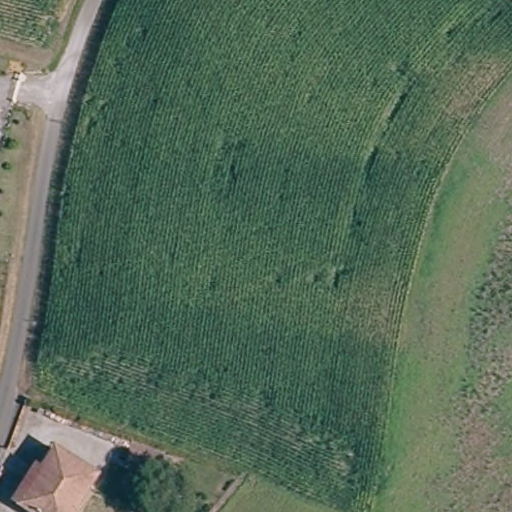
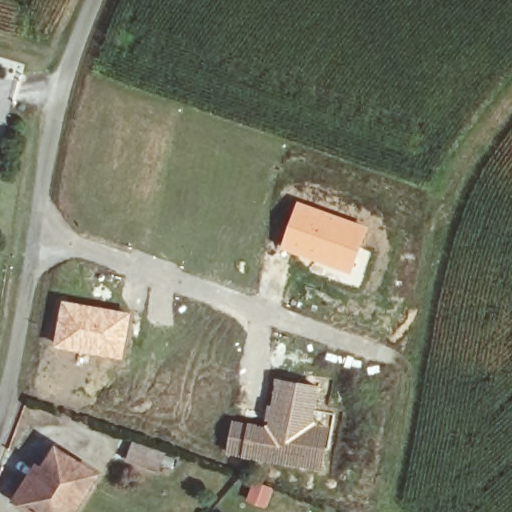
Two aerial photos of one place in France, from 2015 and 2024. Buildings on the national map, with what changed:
new [(296,199),(367,224),(349,273),(278,247),(296,199)]
new [(61,299),(130,311),(121,358),(52,345),(61,299)]
new [(230,417),(263,423),(274,376),(318,385),(314,410),(332,413),(321,471),(223,453),(230,417)]
unchanged [(164,454),(158,471),(130,461),(136,444),(164,454)]
unchanged [(73,512),(32,512),(21,505),(15,501),(36,469),(42,473),(56,451),(96,477),(73,512)]

